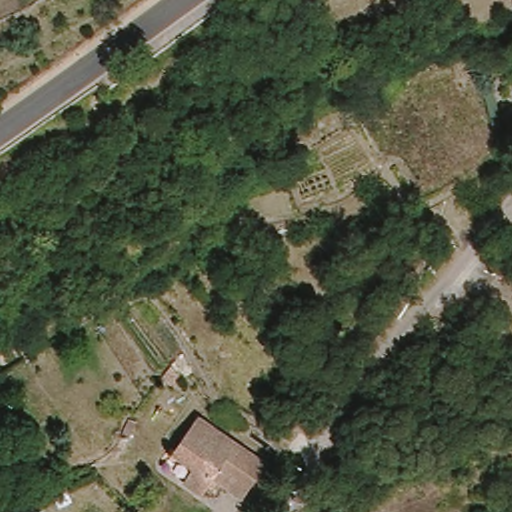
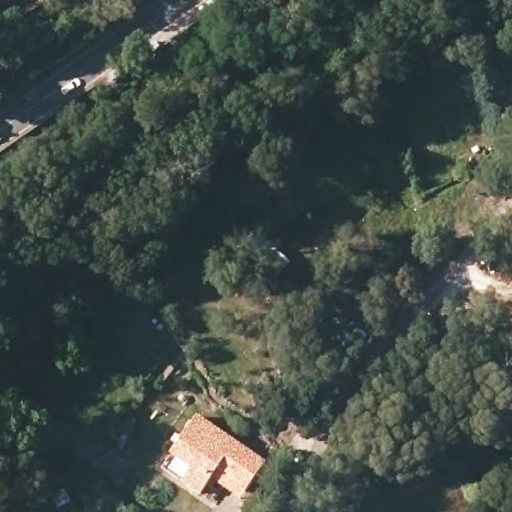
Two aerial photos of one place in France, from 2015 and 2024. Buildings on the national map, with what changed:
unchanged [(206,479),(198,494),(178,483),(187,468),(166,455),(188,416),(258,456),(240,488),(236,495),(206,479)]

